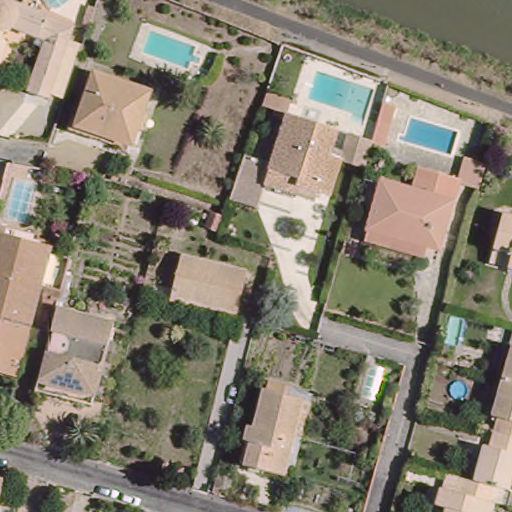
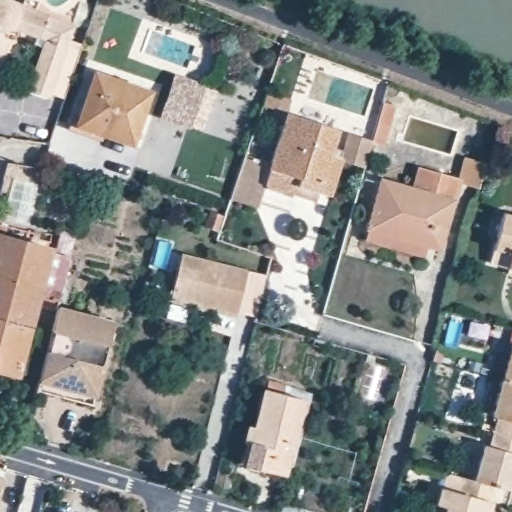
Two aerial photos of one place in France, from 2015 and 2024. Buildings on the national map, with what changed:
unchanged [(56,100),(55,104),(32,96),(49,45),(17,32),(15,34),(12,35),(11,35),(9,35),(8,35),(6,41),(11,49),(0,87),(0,4),(3,4),(5,3),(7,2),(10,3),(12,4),(27,10),(29,5),(42,10),(40,15),(79,31),(74,45),(87,50),(69,105),(56,100)]
unchanged [(100,13),(93,32),(86,30),(93,10),(100,13)]
new [(206,85),(192,126),(158,115),(172,74),(206,85)]
unchanged [(156,96),(137,150),(80,131),(98,76),(156,96)]
unchanged [(339,130),(331,156),(342,160),(330,197),(318,193),(315,201),(266,185),(257,210),(229,200),(245,155),(270,164),(284,120),(278,119),(280,111),(262,106),(266,92),(291,100),(287,114),(339,130)]
unchanged [(385,147),(371,143),(383,102),(396,106),(385,147)]
unchanged [(370,246),(373,235),(387,184),(419,193),(425,172),(464,183),(469,162),(491,169),(485,194),(465,188),(445,255),(434,252),(430,262),(370,246)]
unchanged [(223,216),(217,231),(204,226),(209,211),(223,216)]
unchanged [(512,222),(512,271),(500,268),(512,222)]
unchanged [(51,248),(31,323),(0,315),(0,235),(51,248)]
unchanged [(175,302),(176,297),(186,255),(251,271),(241,314),(240,319),(175,302)]
unchanged [(131,301),(127,306),(119,301),(122,295),(131,301)]
unchanged [(59,298),(56,307),(41,303),(43,296),(51,298),(51,296),(59,298)]
unchanged [(36,390),(38,381),(56,307),(114,322),(95,396),(93,405),(36,390)]
unchanged [(31,323),(17,376),(0,372),(0,315),(31,323)]
unchanged [(512,364),(512,386),(507,385),(512,364)]
unchanged [(502,422),(497,420),(507,385),(512,386),(512,440),(499,436),(502,422)]
unchanged [(248,476),(253,455),(247,453),(252,435),(258,436),(267,399),(271,400),(273,390),(290,395),(290,397),(316,403),(314,412),(316,412),(308,446),(300,475),(294,473),(291,487),(248,476)]
unchanged [(479,485),(489,450),(495,451),(499,436),(512,440),(512,495),(503,492),(479,485)]
unchanged [(232,476),(229,490),(212,487),(215,472),(232,476)]
unchanged [(0,502),(0,475),(6,476),(0,502)]
unchanged [(503,492),(499,507),(498,507),(497,512),(450,512),(440,509),(445,492),(452,495),(455,479),(479,485),(503,492)]
unchanged [(282,512),(284,503),(313,512),(282,512)]

